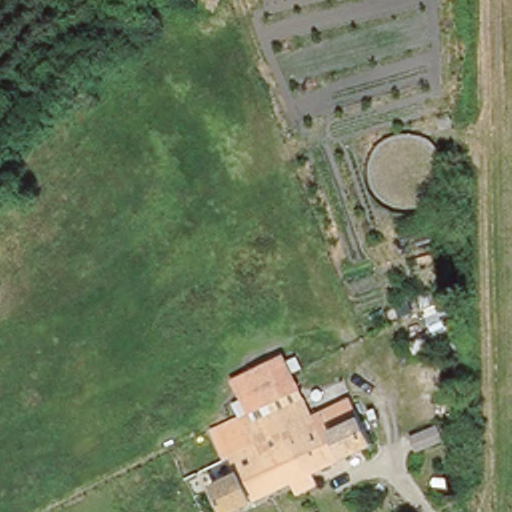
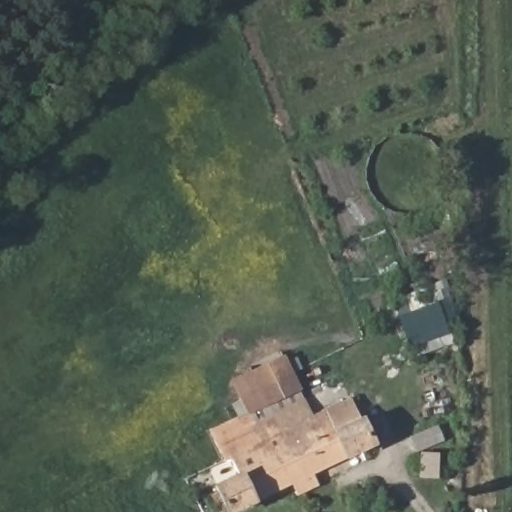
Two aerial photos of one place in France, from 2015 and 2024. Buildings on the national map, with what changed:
new [(396,311),(434,297),(454,345),(415,358),(396,311)]
unchanged [(211,481),(230,474),(212,425),(239,412),(235,401),(245,398),(250,408),(266,400),(250,366),(286,350),(302,391),(313,410),(358,390),(380,443),(333,462),(315,471),(321,483),(298,493),(295,479),(260,501),(233,512),(224,512),(211,481)]

